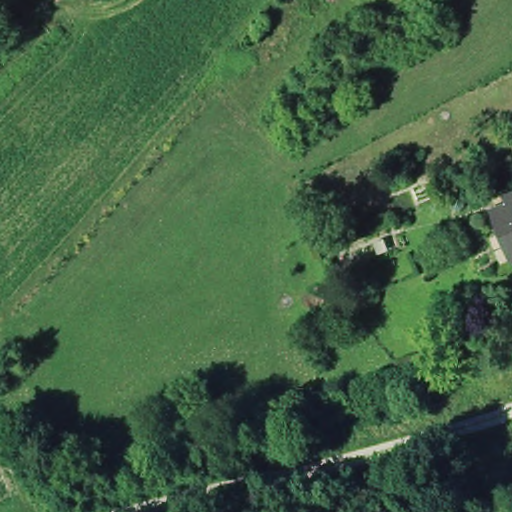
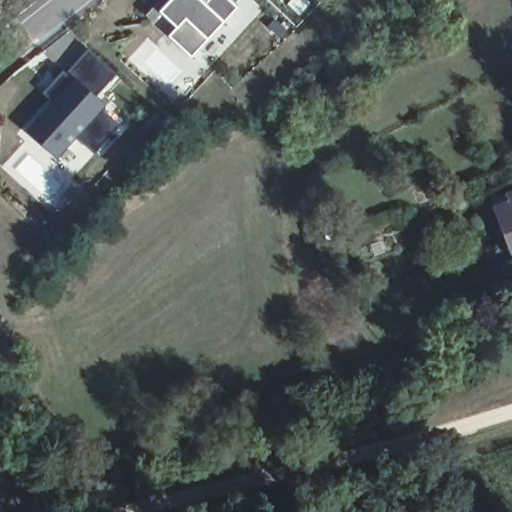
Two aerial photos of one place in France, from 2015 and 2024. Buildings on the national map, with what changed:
new [(225,23),(208,40),(192,59),(168,37),(177,29),(159,13),(171,0),(229,0),(237,8),(225,23)]
new [(75,138),(55,160),(53,158),(25,131),(28,127),(52,103),(41,94),(62,70),(65,74),(87,49),(115,75),(95,98),(102,105),(103,104),(105,106),(101,110),(119,127),(100,148),(93,155),(75,138)]
unchanged [(502,227),(499,219),(512,215),(512,239),(507,242),(502,227)]

